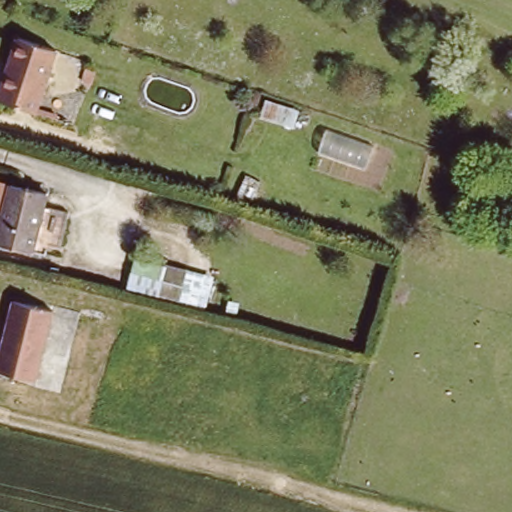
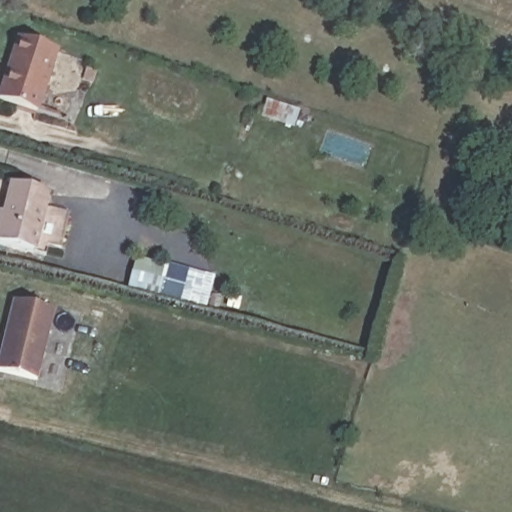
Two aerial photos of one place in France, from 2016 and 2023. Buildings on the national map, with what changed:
unchanged [(57,49),(36,111),(0,99),(0,93),(19,38),(57,49)]
unchanged [(30,251),(0,244),(0,213),(1,213),(9,184),(45,193),(30,251)]
unchanged [(139,255),(190,268),(182,300),(130,288),(139,255)]
unchanged [(9,331),(17,299),(57,309),(49,340),(40,377),(0,367),(9,331)]

